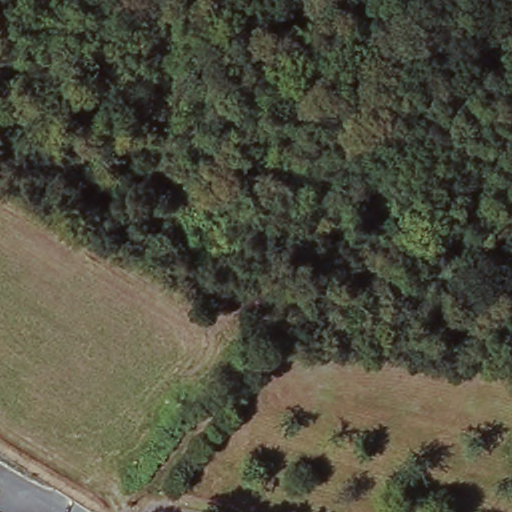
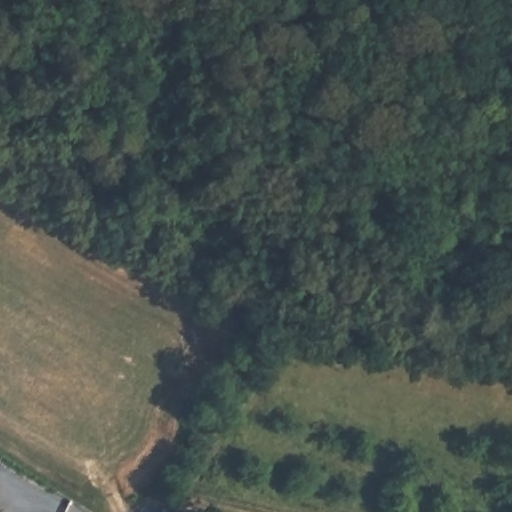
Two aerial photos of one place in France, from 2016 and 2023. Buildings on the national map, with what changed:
[]

